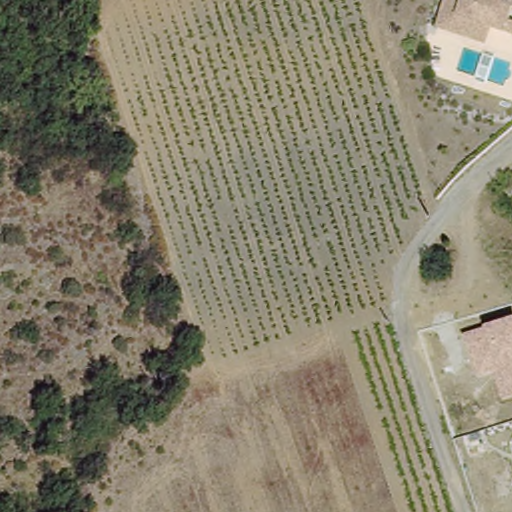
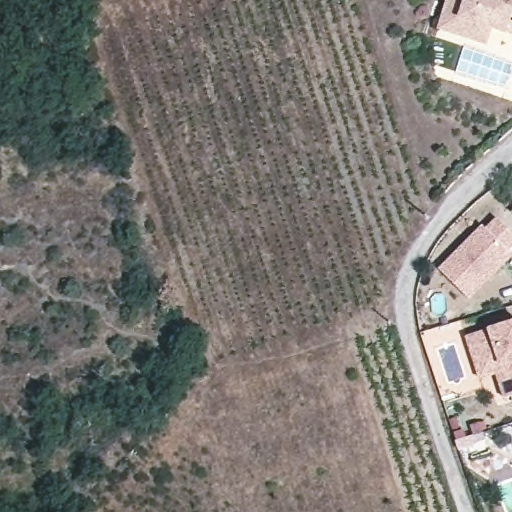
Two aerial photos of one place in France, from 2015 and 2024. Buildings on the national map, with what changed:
unchanged [(482,47),(434,36),(442,0),(449,0),(460,2),(456,26),(485,32),(482,47)]
unchanged [(512,28),(512,38),(485,32),(456,26),(460,2),(461,0),(512,0),(512,14),(508,17),(506,27),(512,28)]
new [(497,217),(512,232),(512,248),(509,251),(512,253),(512,259),(470,301),(438,270),(482,225),(486,229),(497,217)]
unchanged [(479,378),(466,337),(489,328),(512,321),(512,396),(504,398),(496,373),(479,378)]

